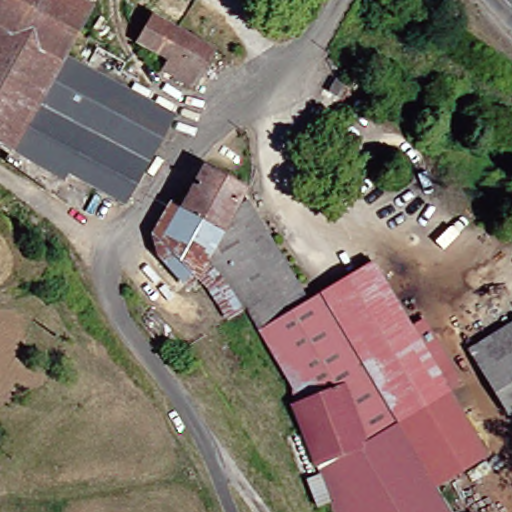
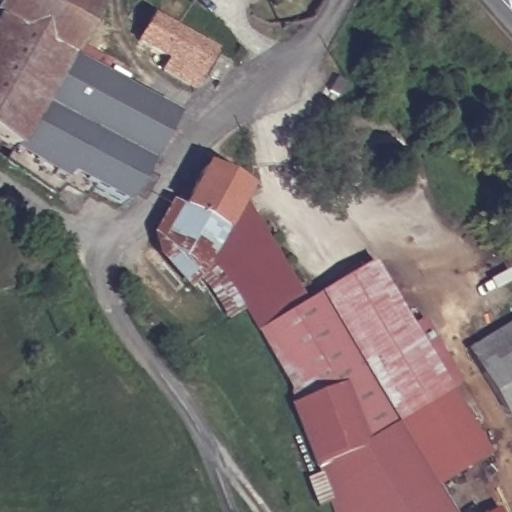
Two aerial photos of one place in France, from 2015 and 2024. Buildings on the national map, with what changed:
unchanged [(89,81),(100,63),(127,78),(124,85),(140,94),(134,107),(173,128),(130,208),(72,174),(66,184),(0,146),(0,0),(72,0),(96,14),(68,69),(89,81)]
unchanged [(160,73),(137,47),(151,19),(210,51),(191,91),(160,73)]
unchanged [(237,200),(220,231),(226,237),(197,273),(185,288),(140,254),(166,202),(180,207),(200,171),(242,191),(237,200)]
unchanged [(471,410),(480,429),(470,435),(485,458),(430,490),(444,512),(330,512),(327,505),(314,511),(302,482),(316,476),(313,472),(289,406),(294,403),(255,332),(244,312),(228,324),(197,273),(226,237),(220,231),(237,200),(251,215),(306,303),(370,266),(460,417),(471,410)]
unchanged [(505,419),(463,352),(512,323),(512,415),(505,419)]

